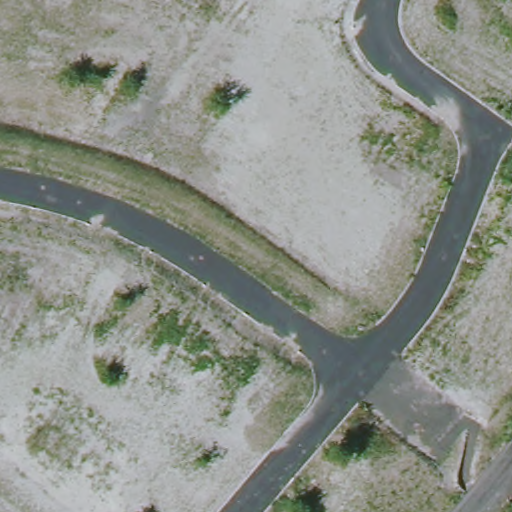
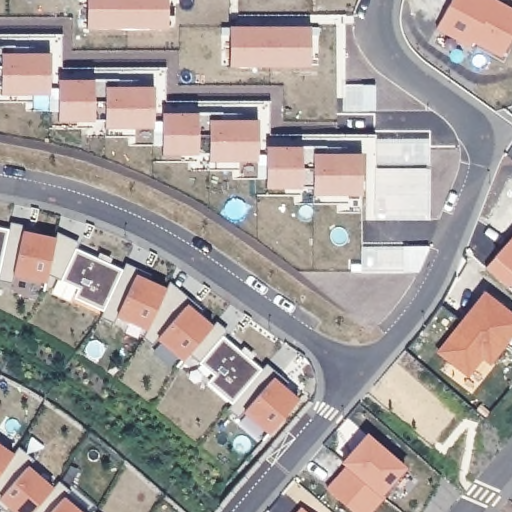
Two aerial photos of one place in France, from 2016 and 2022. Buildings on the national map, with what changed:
new [(88,27),(88,0),(168,0),(168,27),(88,27)]
new [(512,9),(512,38),(503,55),(475,40),(471,45),(437,26),(452,0),(496,0),(512,9)]
new [(231,66),(230,26),(310,26),(310,65),(231,66)]
new [(1,95),(1,80),(0,80),(0,43),(47,45),(48,94),(1,95)]
new [(105,127),(105,115),(94,114),(93,120),(58,121),(59,79),(151,79),(153,86),(153,125),(105,127)]
new [(210,160),(210,149),(197,149),(197,155),(163,155),(162,111),(256,113),(256,119),(258,160),(210,160)]
new [(314,193),(313,182),(302,182),(302,190),(267,190),(266,177),(263,177),(263,147),(360,147),(360,152),(361,194),(314,193)]
new [(270,433),(245,412),(238,419),(228,410),(234,404),(208,383),(215,376),(200,364),(202,362),(188,355),(183,359),(157,338),(152,344),(144,338),(150,330),(117,317),(116,322),(101,316),(105,310),(76,297),(80,288),(61,281),(46,276),(45,282),(13,275),(11,283),(0,280),(0,272),(0,227),(10,229),(12,224),(25,229),(56,237),(58,232),(78,243),(77,248),(123,270),(125,266),(136,273),(167,288),(170,283),(190,303),(215,325),(217,322),(227,331),(223,336),(263,370),(267,365),(286,380),(281,384),(298,398),(270,433)]
new [(488,265),(495,255),(512,235),(512,282),(510,285),(488,265)]
new [(430,245),(422,265),(418,272),(404,272),(403,246),(430,245)]
new [(512,313),(512,333),(490,361),(482,355),(468,373),(439,350),(485,292),(512,313)]
new [(343,461),(367,433),(405,466),(381,492),(384,495),(369,512),(355,512),(327,488),(348,465),(343,461)]
new [(18,445),(33,459),(27,466),(52,488),(31,512),(17,512),(0,497),(0,472),(12,454),(18,445)]
new [(12,454),(0,472),(0,446),(12,454)]
new [(58,480),(70,490),(63,497),(80,512),(31,512),(52,488),(58,480)]
new [(308,512),(298,512),(302,507),(308,512)]
new [(96,512),(94,512),(95,511),(96,512)]

